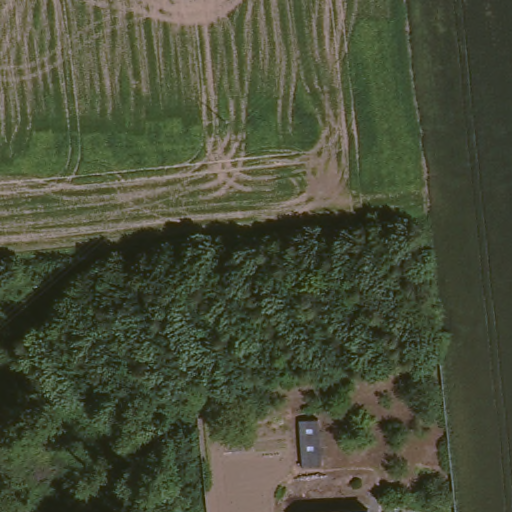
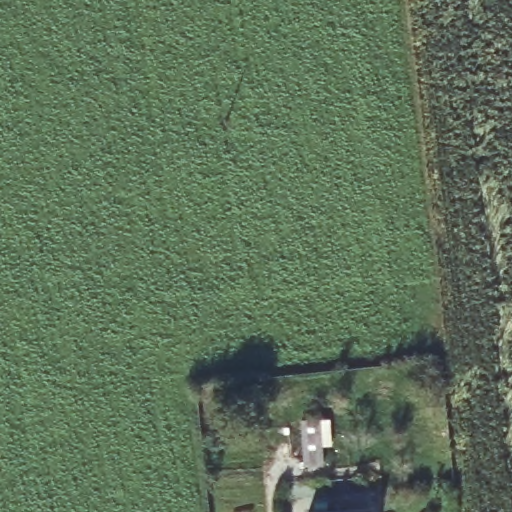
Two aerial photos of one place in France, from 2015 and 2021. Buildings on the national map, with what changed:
unchanged [(319,466),(301,468),(299,423),(317,421),(319,466)]
unchanged [(371,512),(318,512),(369,504),(371,512)]

